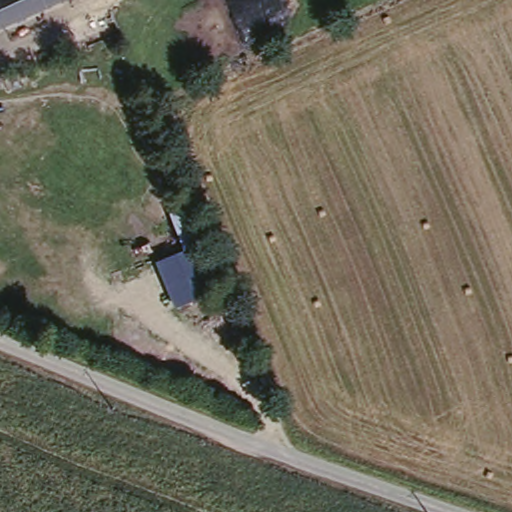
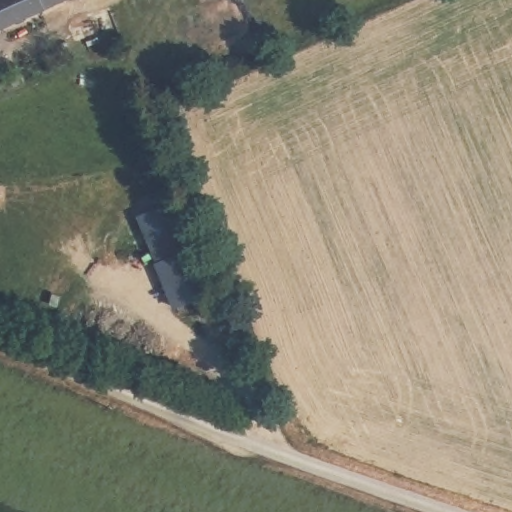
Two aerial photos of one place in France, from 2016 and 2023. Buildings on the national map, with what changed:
unchanged [(77,0),(0,31),(0,0),(77,0)]
unchanged [(174,308),(154,262),(182,250),(183,250),(181,241),(170,217),(184,211),(195,236),(219,288),(174,308)]

